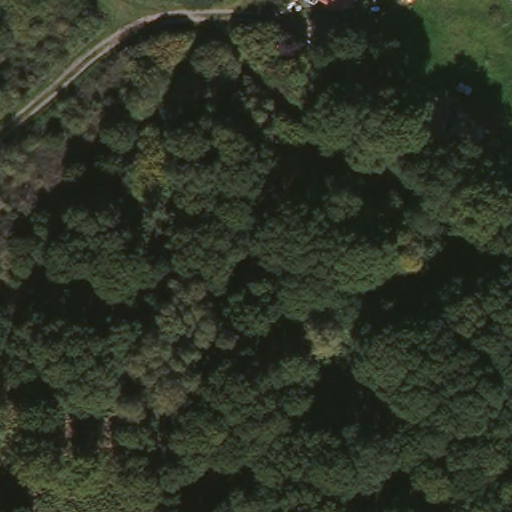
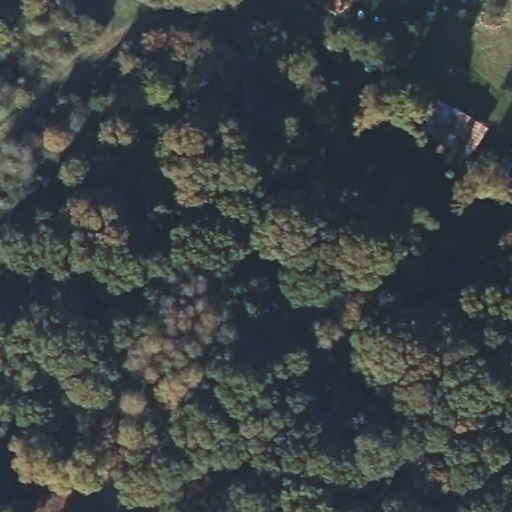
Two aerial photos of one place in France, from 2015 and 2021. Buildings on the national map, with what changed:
unchanged [(323,0),(344,0),(337,11),(323,0)]

